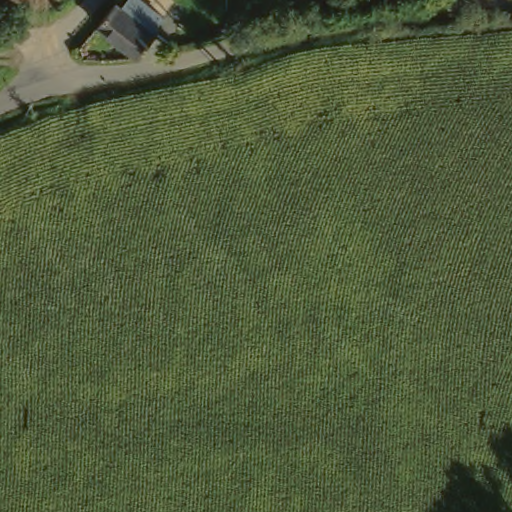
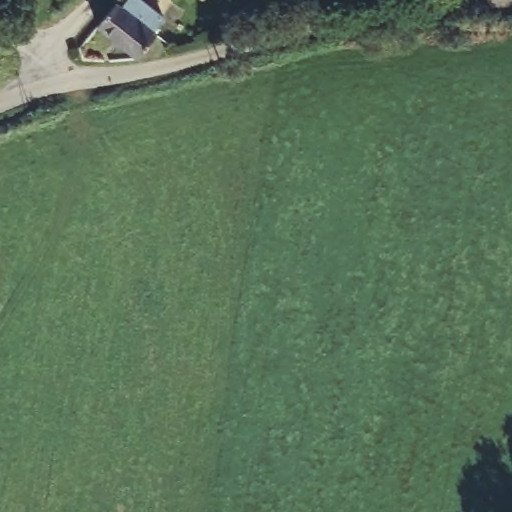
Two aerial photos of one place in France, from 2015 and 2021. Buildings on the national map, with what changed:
unchanged [(160,35),(138,59),(114,37),(105,46),(94,34),(125,4),(132,9),(140,0),(143,0),(165,21),(156,31),(160,35)]

